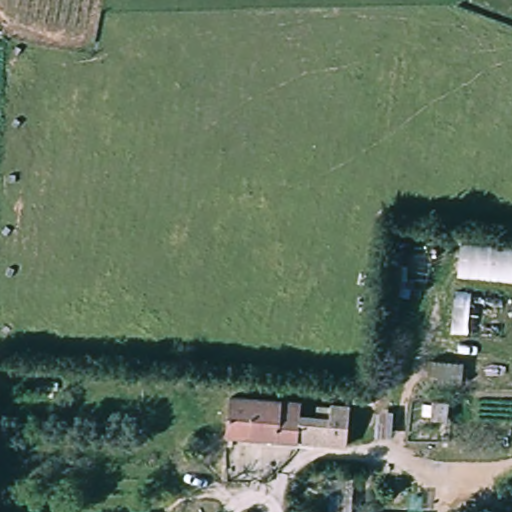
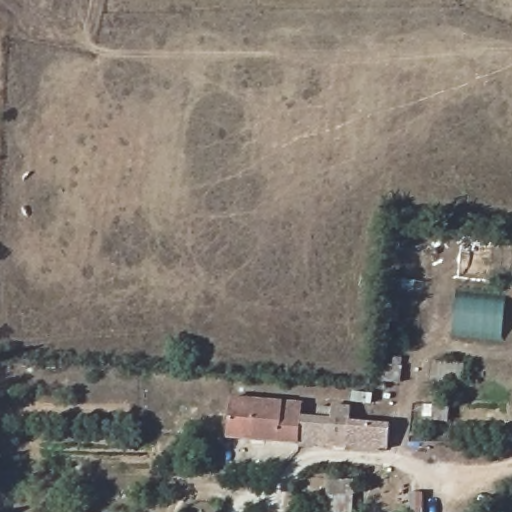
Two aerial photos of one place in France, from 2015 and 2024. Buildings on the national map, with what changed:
unchanged [(512,252),(512,290),(461,285),(463,248),(512,252)]
new [(457,290),(506,295),(502,340),(453,335),(457,290)]
demolished [(460,294),(512,299),(512,337),(459,335),(460,294)]
new [(465,363),(463,384),(428,382),(430,360),(465,363)]
unchanged [(301,402),(299,417),(332,420),(333,405),(350,407),(348,445),(227,436),(229,397),(301,402)]
unchanged [(457,407),(455,427),(434,425),(436,404),(457,407)]

